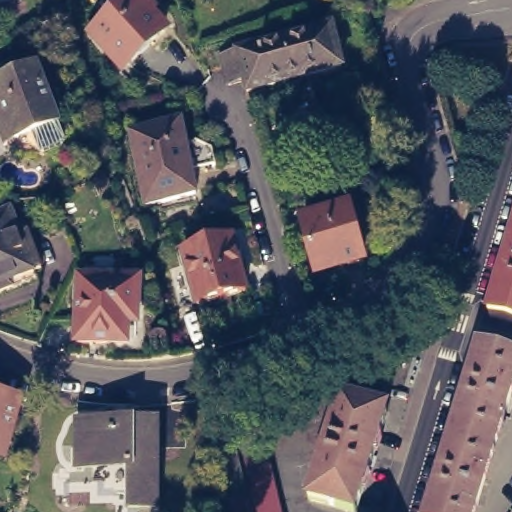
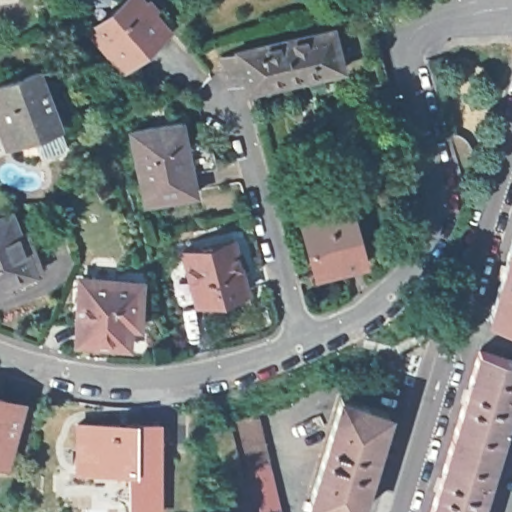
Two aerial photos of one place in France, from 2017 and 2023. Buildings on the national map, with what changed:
unchanged [(134,61),(103,27),(134,0),(153,0),(175,24),(134,61)]
unchanged [(245,77),(230,80),(225,63),(222,51),(235,47),(332,22),(343,64),(310,72),(247,87),(245,77)]
unchanged [(5,118),(0,104),(0,98),(6,95),(0,79),(0,76),(43,59),(65,114),(72,132),(70,136),(51,144),(46,142),(40,124),(22,131),(12,135),(5,118)]
unchanged [(146,205),(132,131),(181,122),(197,194),(146,205)]
unchanged [(0,283),(0,206),(10,202),(37,269),(0,283)]
unchanged [(353,208),(368,261),(322,275),(308,221),(353,208)]
unchanged [(252,286),(202,299),(189,245),(237,233),(252,286)]
unchanged [(512,244),(512,323),(490,317),(512,244)]
unchanged [(137,314),(128,314),(127,334),(76,332),(80,268),(140,271),(137,314)]
unchanged [(512,358),(512,408),(480,512),(435,512),(485,349),(512,358)]
unchanged [(10,454),(0,452),(0,391),(25,398),(10,454)]
unchanged [(391,411),(361,512),(350,512),(315,501),(347,398),(391,411)]
unchanged [(282,512),(255,512),(235,420),(234,416),(260,413),(282,512)]
unchanged [(214,419),(234,416),(235,420),(255,512),(233,512),(214,419)]
unchanged [(160,509),(131,509),(130,468),(78,468),(78,423),(158,423),(160,509)]

